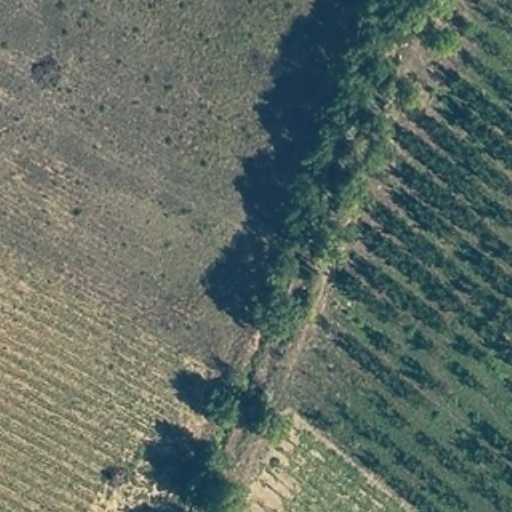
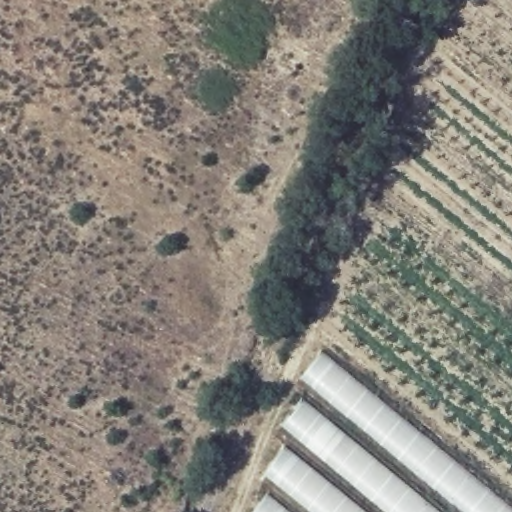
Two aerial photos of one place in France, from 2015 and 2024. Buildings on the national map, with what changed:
new [(263,477),(293,438),(282,428),(314,388),(303,378),(324,352),(512,509),(512,512),(255,512),(275,486),(263,477)]

